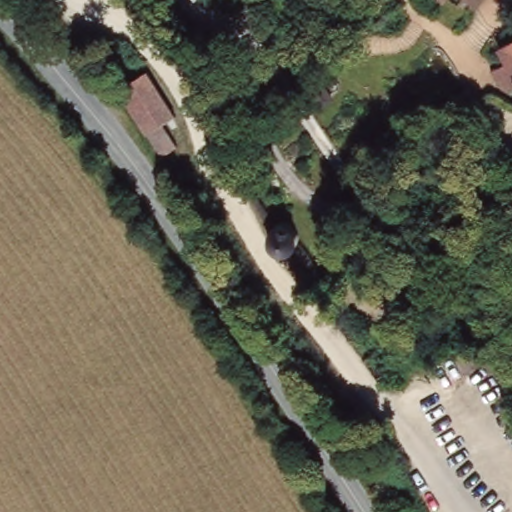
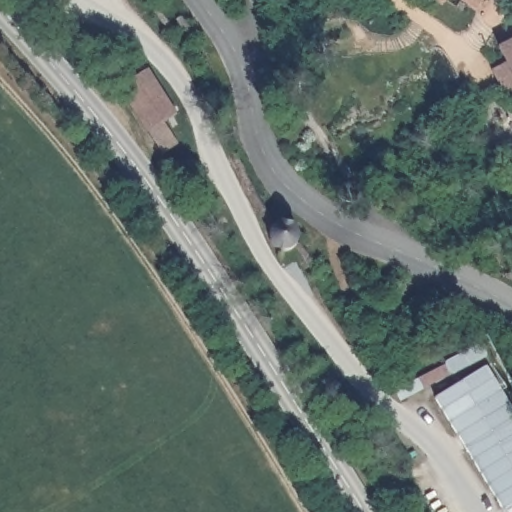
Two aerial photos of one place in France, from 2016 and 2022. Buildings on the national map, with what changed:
unchanged [(438,0),(451,0),(447,6),(438,0)]
unchanged [(472,0),(480,0),(478,4),(472,0)]
unchanged [(512,39),(512,72),(499,46),(512,39)]
unchanged [(121,81),(149,66),(179,111),(162,120),(176,142),(164,149),(121,81)]
unchanged [(302,239),(298,250),(286,255),(272,248),(270,234),(276,225),(284,222),(295,226),(302,239)]
new [(464,447),(434,397),(486,368),(502,391),(512,408),(512,512),(504,512),(464,447)]

